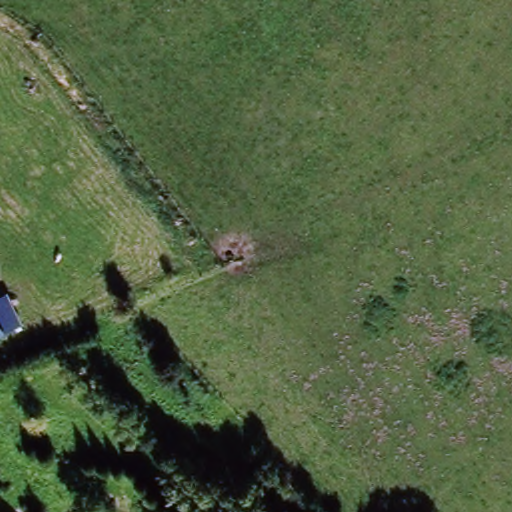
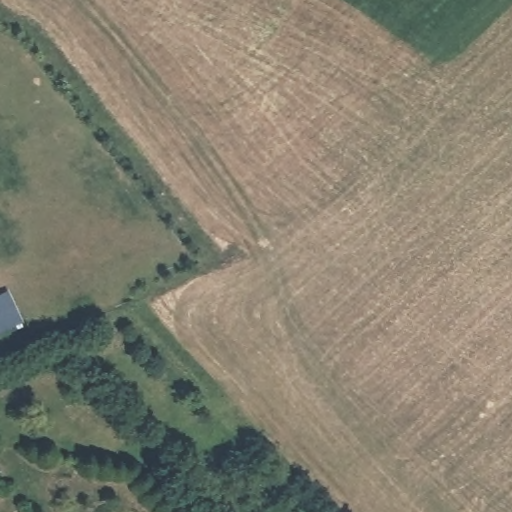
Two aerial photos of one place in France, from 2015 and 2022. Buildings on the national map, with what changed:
unchanged [(17,293),(30,324),(0,335),(0,300),(17,293)]
unchanged [(219,512),(202,512),(177,484),(196,466),(229,503),(219,512)]

